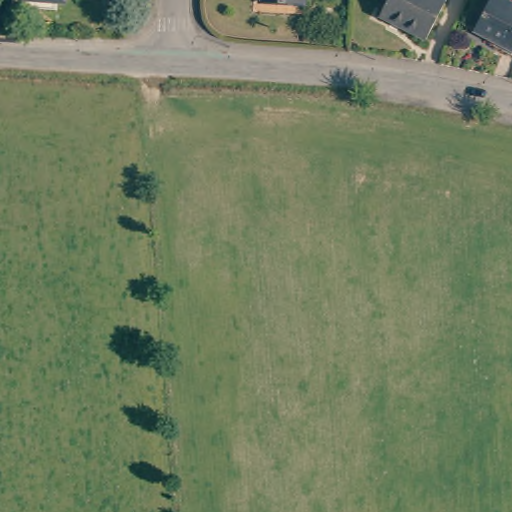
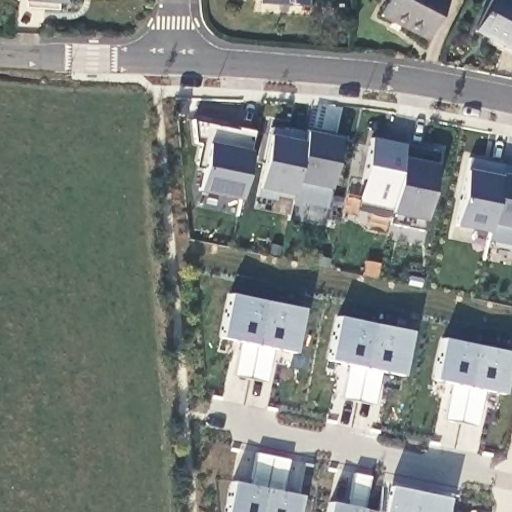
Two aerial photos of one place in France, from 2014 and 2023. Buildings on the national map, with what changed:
unchanged [(305,5),(260,2),(261,0),(306,0),(305,5)]
unchanged [(426,35),(380,11),(386,0),(444,0),(426,35)]
unchanged [(479,27),(493,0),(512,0),(512,44),(479,27)]
new [(236,130),(237,127),(255,131),(240,200),(198,191),(203,166),(196,165),(200,145),(194,144),(192,120),(236,130)]
new [(276,196),(275,201),(256,197),(271,129),(289,132),(290,130),(305,133),(306,130),(329,135),(328,138),(340,140),(325,209),(291,201),(291,200),(276,196)]
new [(371,139),(405,146),(390,218),(368,214),(356,211),(358,197),(371,139)]
new [(469,159),(503,165),(489,232),(455,225),(469,159)]
new [(489,232),(503,165),(512,167),(512,246),(487,241),(489,232)]
new [(302,309),(293,351),(220,338),(230,295),(302,309)]
new [(338,317),(411,331),(402,375),(329,360),(338,317)]
new [(444,338),(511,353),(502,393),(435,380),(444,338)]
new [(301,496),(297,512),(224,512),(230,482),(301,496)]
new [(445,498),(444,512),(383,512),(388,487),(445,498)]
new [(379,512),(327,512),(329,502),(379,512)]

